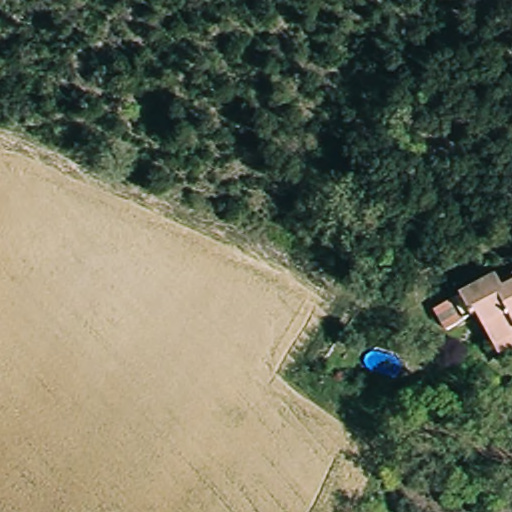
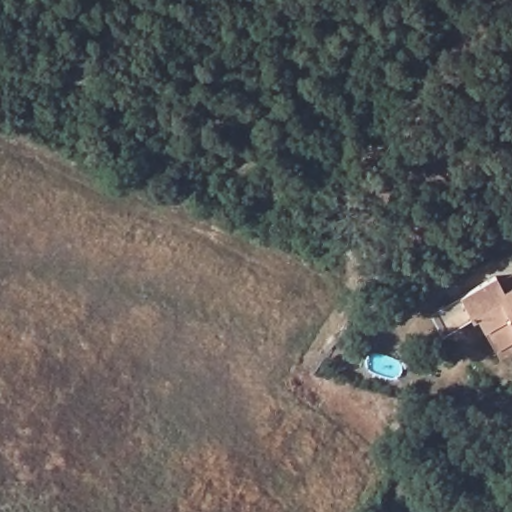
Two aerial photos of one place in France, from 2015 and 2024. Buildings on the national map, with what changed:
unchanged [(497,353),(479,320),(448,336),(436,315),(499,281),(502,288),(512,282),(512,354),(502,360),(497,353)]

